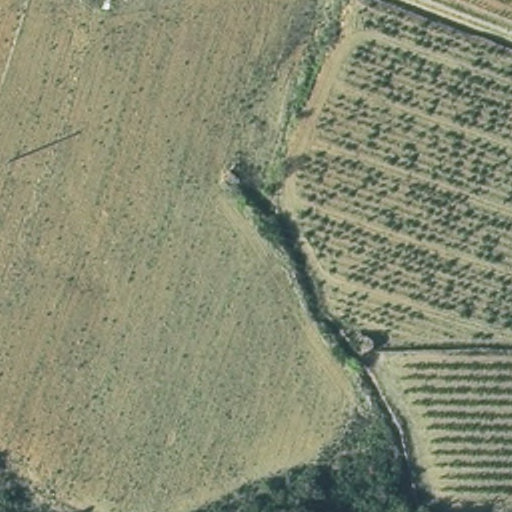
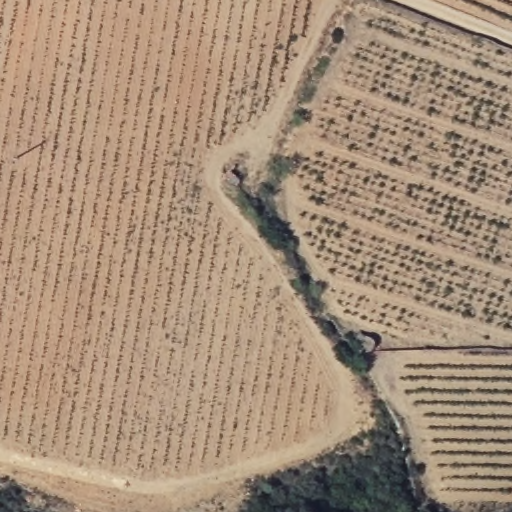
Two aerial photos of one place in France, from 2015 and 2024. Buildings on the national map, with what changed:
unchanged [(376,325),(379,349),(360,352),(356,326),(376,325)]

